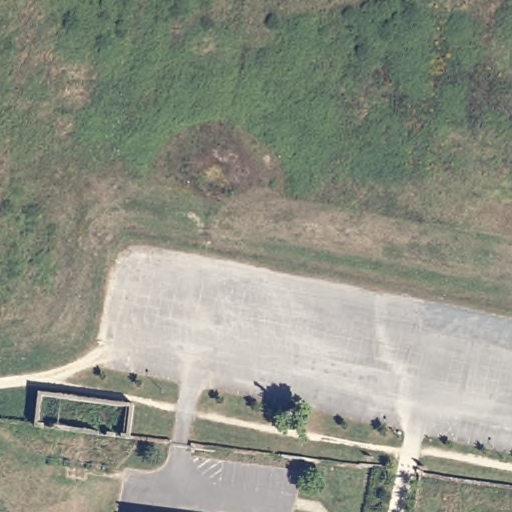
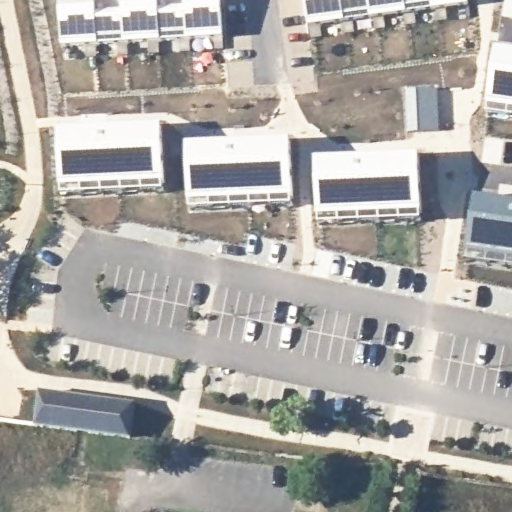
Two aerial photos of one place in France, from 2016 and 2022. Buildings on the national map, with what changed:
new [(114,0),(115,1),(120,1),(120,0),(220,0),(223,40),(61,49),(58,0),(114,0)]
new [(467,0),(468,6),(307,27),(304,0),(467,0)]
new [(489,48),(512,51),(512,119),(480,114),(489,48)]
new [(56,133),(161,128),(165,193),(60,197),(56,133)]
new [(182,146),(295,143),(297,206),(185,209),(182,146)]
new [(311,160),(419,156),(422,222),(313,226),(311,160)]
new [(472,198),(512,204),(512,271),(465,265),(472,198)]

